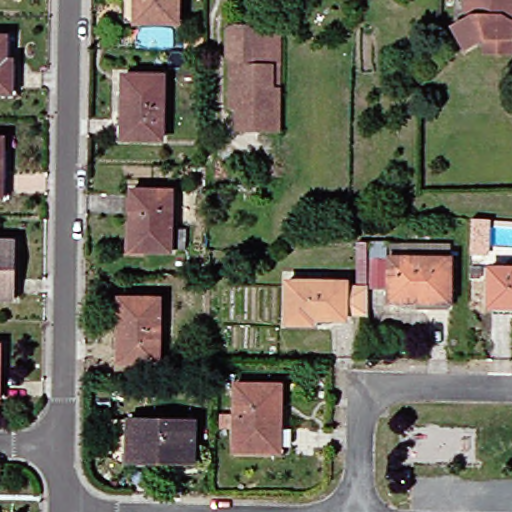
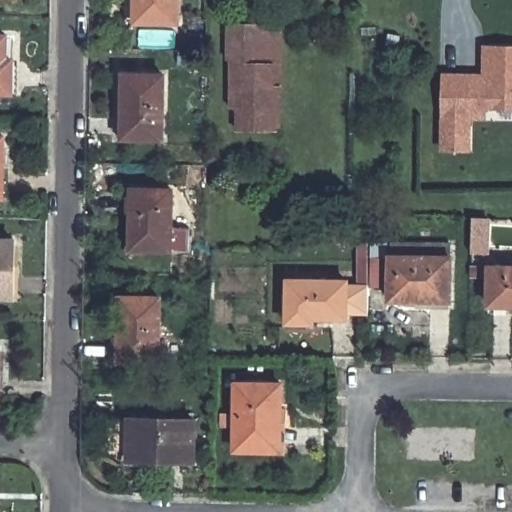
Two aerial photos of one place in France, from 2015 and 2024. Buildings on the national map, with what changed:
unchanged [(137,21),(137,0),(178,0),(178,21),(137,21)]
demolished [(512,18),(512,38),(485,38),(467,48),(455,26),(472,15),(468,6),(468,0),(502,0),(501,12),(512,18)]
unchanged [(266,25),(266,31),(283,31),(281,132),(237,131),(237,108),(230,108),(230,60),(227,59),(227,24),(266,25)]
unchanged [(9,35),(7,58),(14,58),(13,93),(0,92),(0,35),(9,35)]
new [(470,120),(469,153),(442,153),(443,79),(477,79),(484,79),(485,83),(485,49),(512,49),(512,111),(485,110),(485,121),(470,120)]
unchanged [(165,75),(164,140),(124,139),(125,74),(165,75)]
unchanged [(3,196),(0,196),(0,136),(4,136),(3,196)]
unchanged [(171,250),(132,249),(134,190),(172,191),(171,250)]
new [(470,218),(490,220),(490,254),(469,253),(470,218)]
unchanged [(12,299),(0,298),(0,239),(14,240),(12,299)]
unchanged [(450,301),(391,300),(390,257),(450,258),(450,301)]
unchanged [(512,306),(490,306),(491,267),(512,267),(512,306)]
unchanged [(369,314),(347,314),(347,319),(316,319),(315,324),(288,324),(289,280),(346,281),(347,285),(369,286),(369,314)]
unchanged [(161,298),(160,361),(120,360),(121,297),(161,298)]
unchanged [(272,450),(237,450),(237,384),(282,385),(281,423),(281,451),(272,450)]
unchanged [(140,460),(140,452),(119,451),(120,419),(141,419),(205,420),(204,462),(140,460)]

